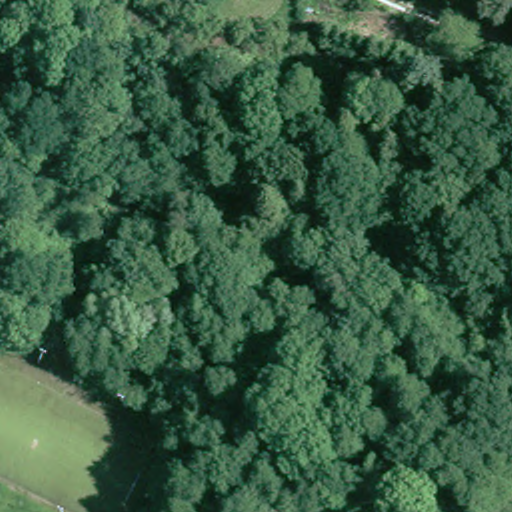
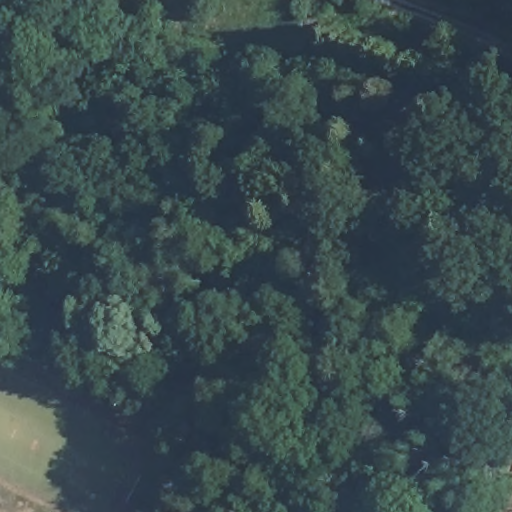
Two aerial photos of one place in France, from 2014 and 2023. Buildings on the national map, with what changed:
[]

